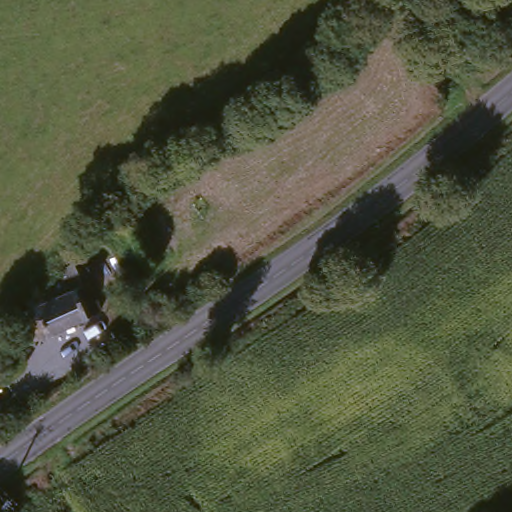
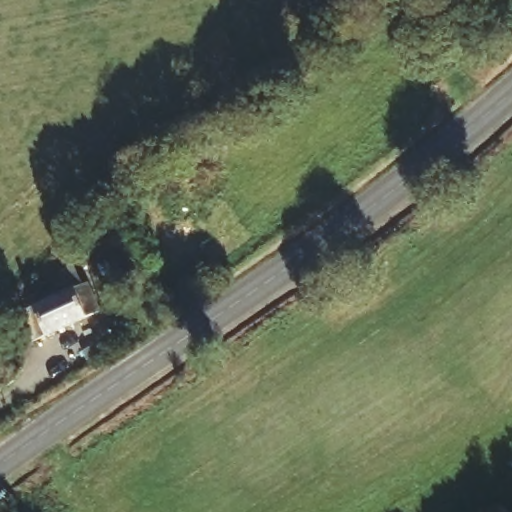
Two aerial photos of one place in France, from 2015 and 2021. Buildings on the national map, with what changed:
unchanged [(23,315),(54,300),(50,288),(77,278),(81,290),(94,285),(102,311),(34,344),(23,315)]

